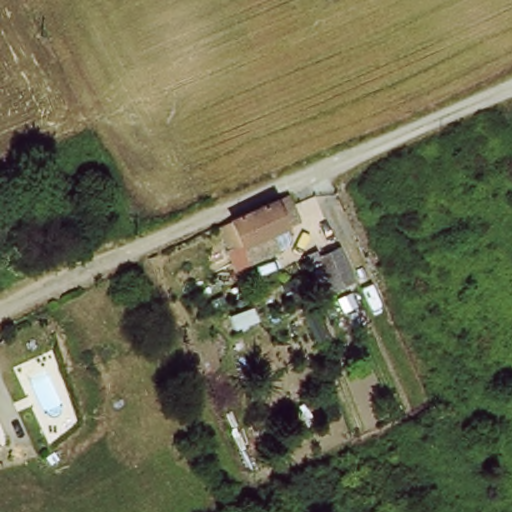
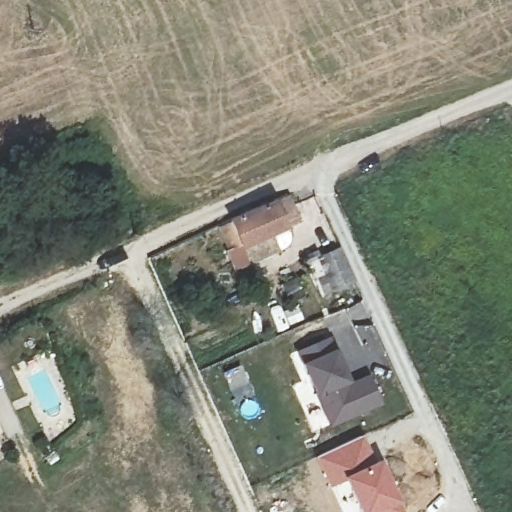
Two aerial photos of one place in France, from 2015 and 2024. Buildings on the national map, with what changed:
unchanged [(275,249),(248,258),(233,217),(277,197),(293,190),(302,215),(288,222),(269,232),(275,249)]
unchanged [(357,285),(323,293),(305,252),(316,249),(322,258),(344,250),(357,285)]
new [(330,335),(335,346),(350,380),(368,373),(382,402),(329,426),(317,396),(302,363),(296,350),(330,335)]
new [(364,435),(375,458),(341,476),(346,485),(334,490),(316,457),(364,435)]
new [(378,457),(406,512),(359,512),(346,485),(341,476),(375,458),(378,457)]

